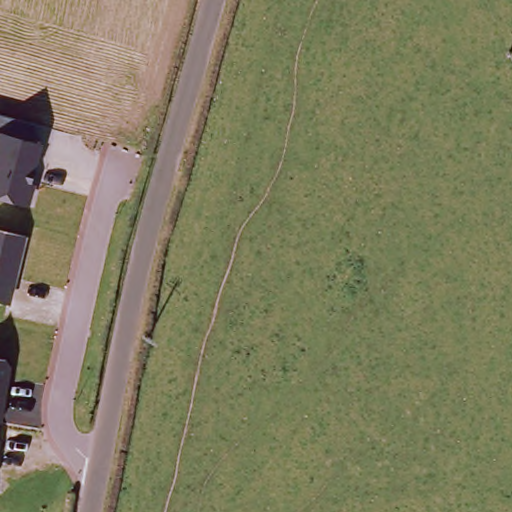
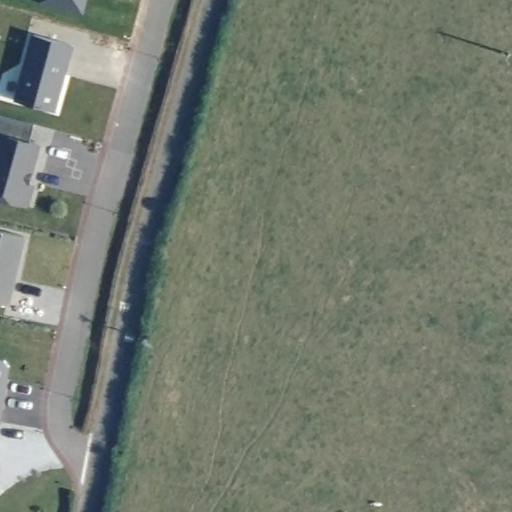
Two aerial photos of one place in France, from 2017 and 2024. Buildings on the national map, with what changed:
new [(80,9),(49,0),(83,0),(80,9)]
new [(56,111),(14,99),(31,33),(75,45),(56,111)]
unchanged [(30,207),(0,199),(0,116),(34,124),(30,140),(41,144),(30,184),(35,185),(30,207)]
unchanged [(26,237),(10,305),(0,302),(0,230),(26,237)]
unchanged [(5,361),(10,366),(0,422),(0,360),(5,361)]

